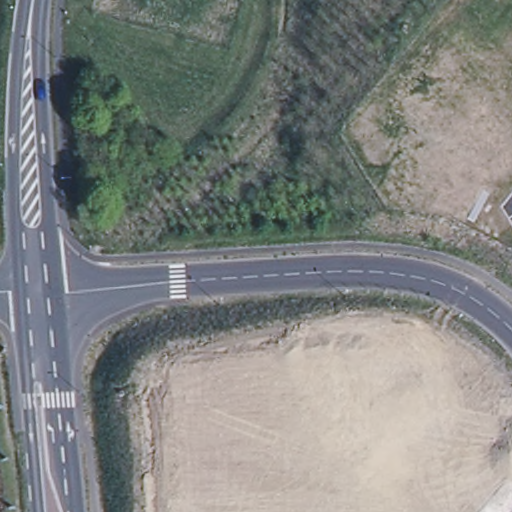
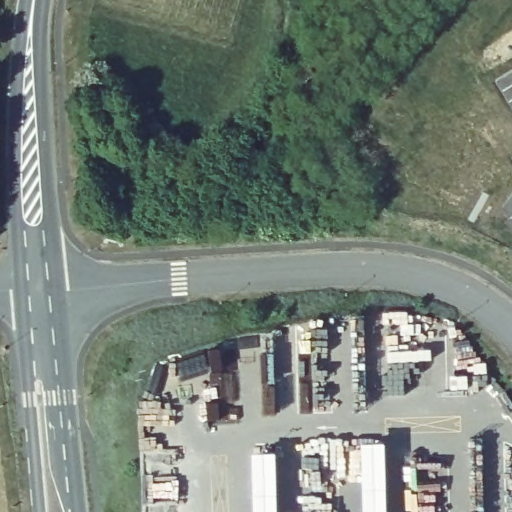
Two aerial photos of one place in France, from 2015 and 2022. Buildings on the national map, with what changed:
new [(386,512),(364,512),(362,445),(384,445),(386,512)]
new [(277,512),(254,512),(253,456),(275,455),(277,512)]

